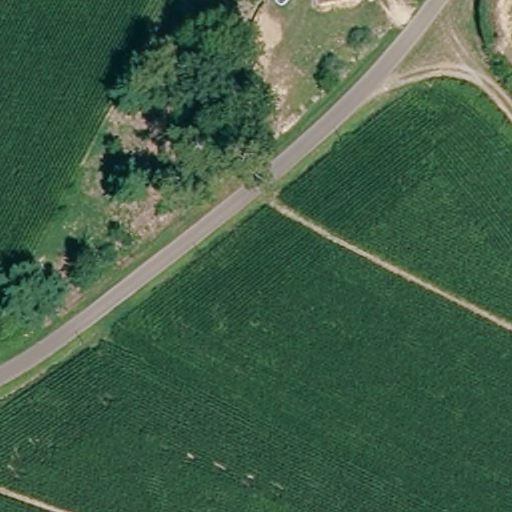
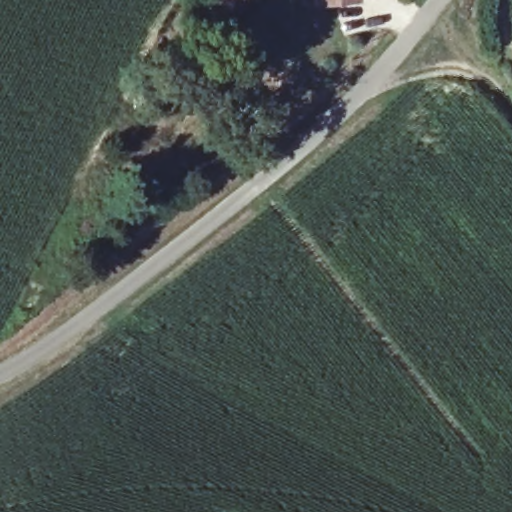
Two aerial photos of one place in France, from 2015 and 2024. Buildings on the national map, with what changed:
unchanged [(322,1),(322,0),(332,0),(322,1)]

